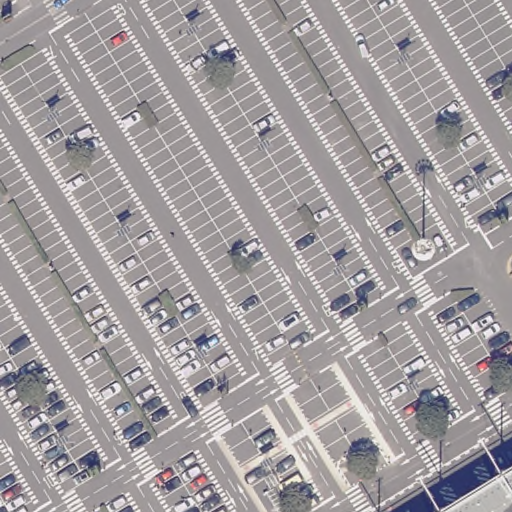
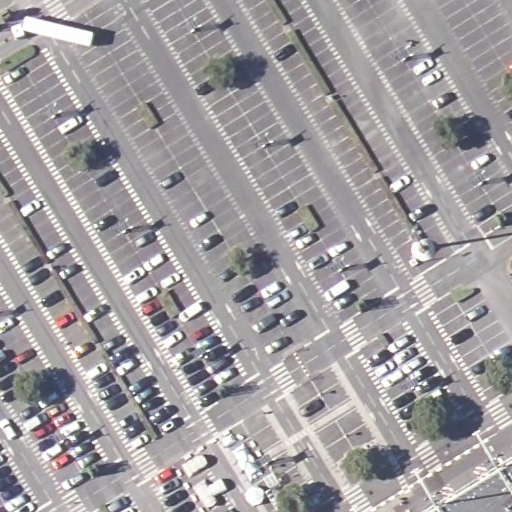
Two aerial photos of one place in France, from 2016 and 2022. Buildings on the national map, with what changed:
unchanged [(449,512),(512,473),(512,512),(449,512)]

